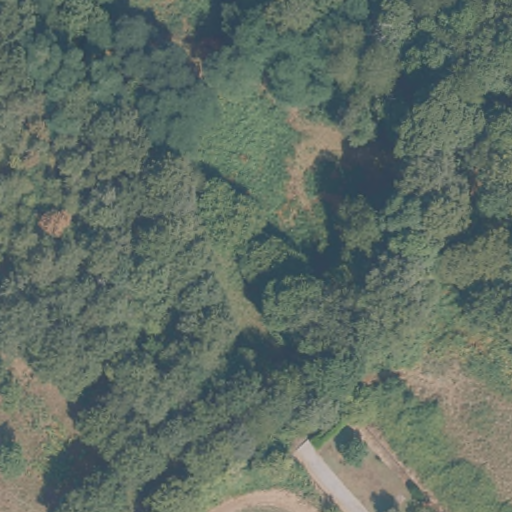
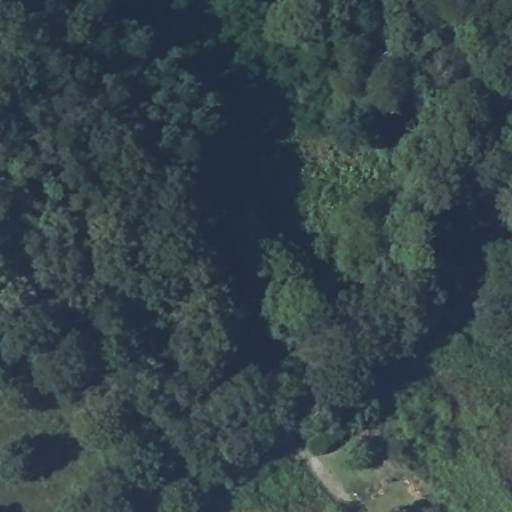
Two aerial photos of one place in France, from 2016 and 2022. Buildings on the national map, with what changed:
[]

